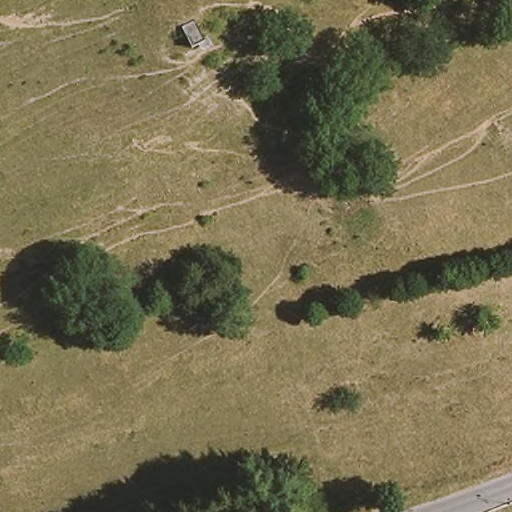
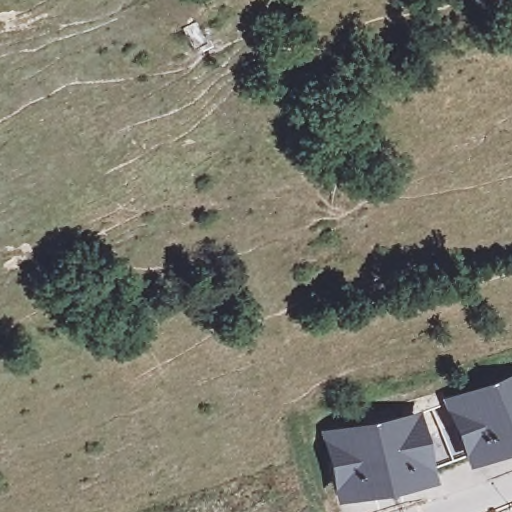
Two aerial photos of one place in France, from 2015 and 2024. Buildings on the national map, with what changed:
new [(337,482),(327,435),(416,417),(416,414),(449,402),(449,401),(512,377),(512,441),(470,457),(469,455),(459,430),(422,443),(427,471),(427,475),(364,487),(339,493),(337,482)]
new [(459,430),(469,455),(427,471),(422,443),(459,430)]

